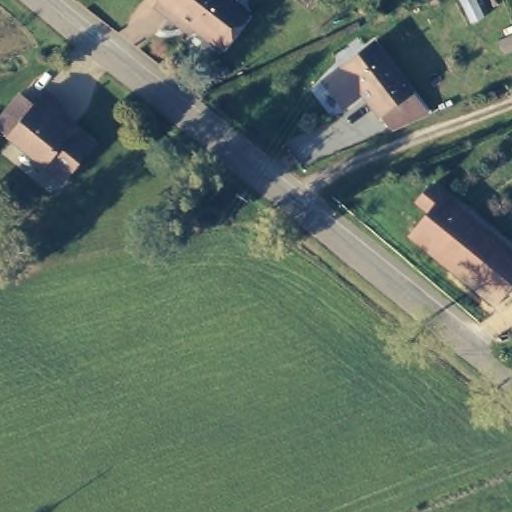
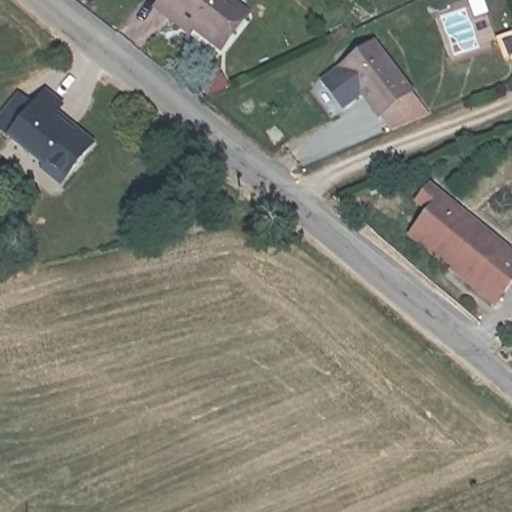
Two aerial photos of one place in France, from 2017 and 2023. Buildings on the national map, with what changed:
unchanged [(189,28),(183,35),(158,15),(164,8),(156,1),(156,0),(224,0),(244,15),(251,20),(225,55),(217,49),(189,28)]
unchanged [(466,22),(455,0),(472,0),(479,16),(466,22)]
unchanged [(408,87),(425,107),(392,121),(382,107),(379,109),(342,60),(374,36),(411,85),(408,87)]
unchanged [(41,164),(0,131),(0,119),(19,97),(33,107),(45,95),(62,110),(54,120),(70,133),(75,129),(91,145),(66,175),(62,180),(41,164)]
unchanged [(428,211),(416,201),(430,184),(443,195),(512,252),(512,279),(493,302),(409,234),(428,211)]

